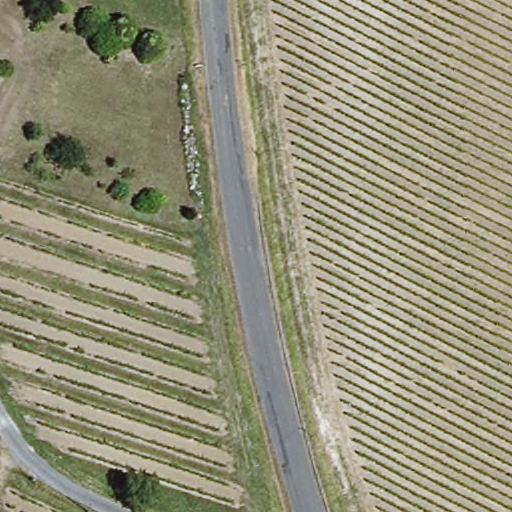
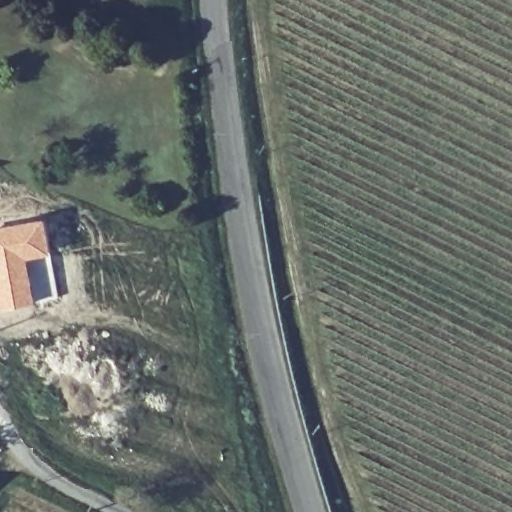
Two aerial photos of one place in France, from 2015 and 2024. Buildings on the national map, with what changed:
new [(54,253),(30,259),(38,301),(0,309),(0,225),(46,216),(54,253)]

